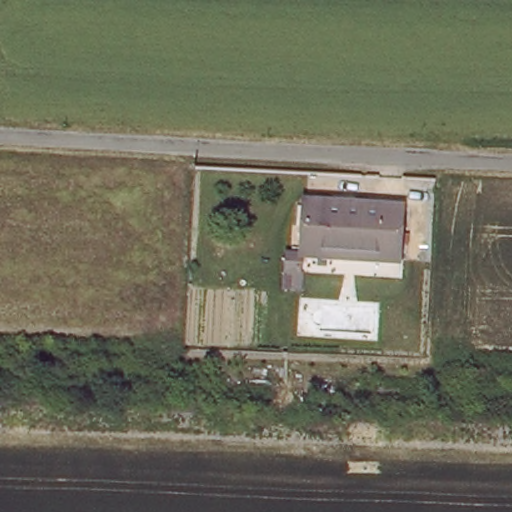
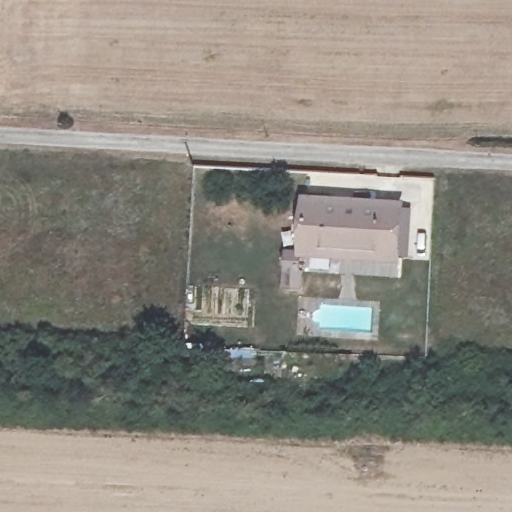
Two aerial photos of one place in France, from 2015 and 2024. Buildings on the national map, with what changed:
unchanged [(307,200),(405,206),(401,257),(304,251),(307,200)]

